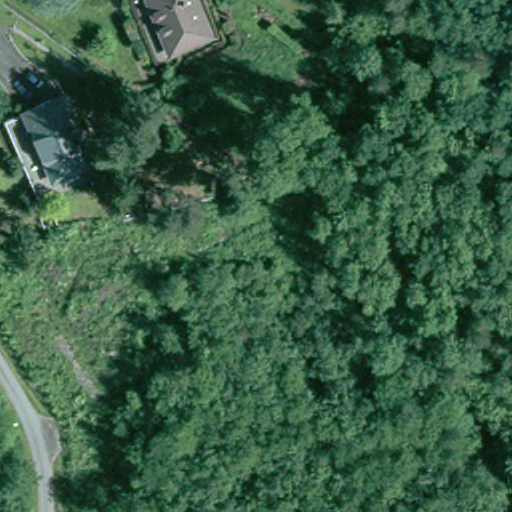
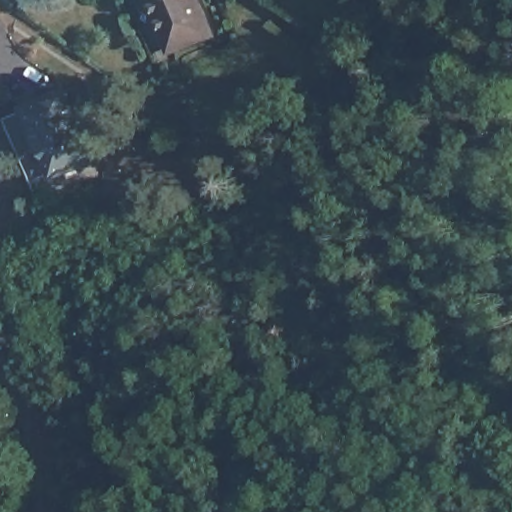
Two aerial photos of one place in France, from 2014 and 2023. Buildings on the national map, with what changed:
unchanged [(194,0),(208,35),(171,51),(152,0),(194,0)]
unchanged [(49,176),(23,113),(57,98),(85,161),(53,175),(49,176)]
unchanged [(58,189),(37,198),(5,121),(23,113),(49,176),(53,175),(58,189)]

